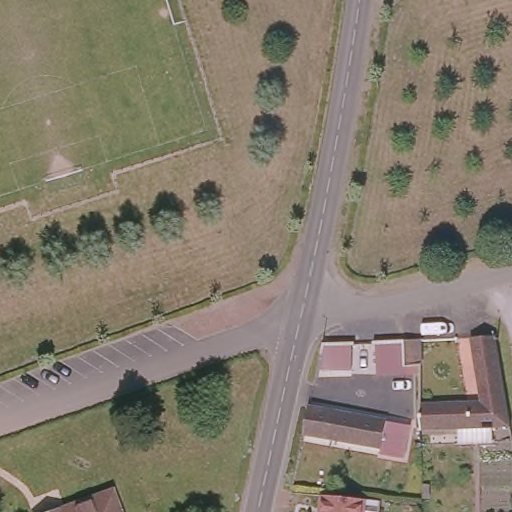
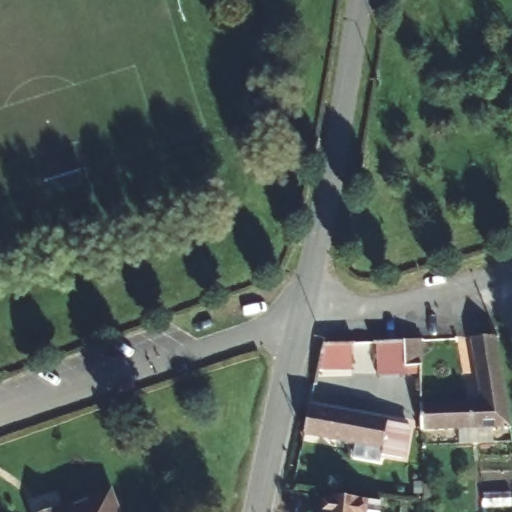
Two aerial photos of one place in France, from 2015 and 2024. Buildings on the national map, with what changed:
unchanged [(510,422),(421,425),(421,400),(483,397),(470,335),(494,330),(510,422)]
unchanged [(345,368),(332,368),(331,362),(331,343),(394,340),(409,340),(409,366),(394,367),(394,360),(344,362),(345,368)]
unchanged [(299,403),(379,417),(397,420),(396,422),(391,453),(369,450),(371,442),(328,435),(293,428),(299,403)]
unchanged [(116,512),(50,512),(108,490),(116,512)]
unchanged [(316,511),(321,511),(324,493),(361,498),(375,500),(374,505),(374,512),(315,512),(316,511)]

